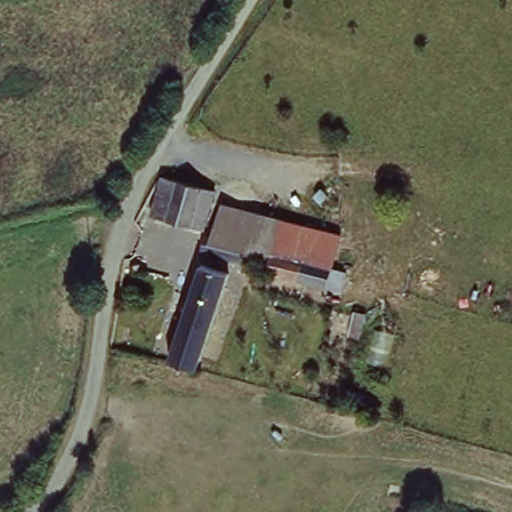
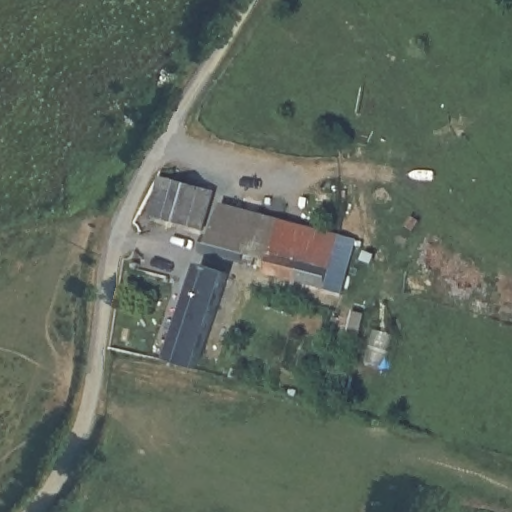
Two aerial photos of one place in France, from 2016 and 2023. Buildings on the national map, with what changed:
unchanged [(152,215),(162,176),(220,191),(217,199),(207,233),(152,215)]
unchanged [(339,233),(330,263),(344,269),(337,289),(265,270),(267,256),(204,243),(217,199),(339,233)]
unchanged [(200,258),(230,267),(228,273),(205,371),(173,362),(200,258)]
unchanged [(361,330),(350,327),(354,304),(367,307),(361,330)]

